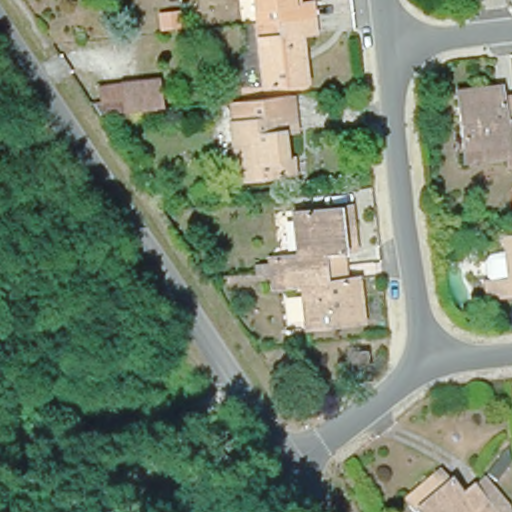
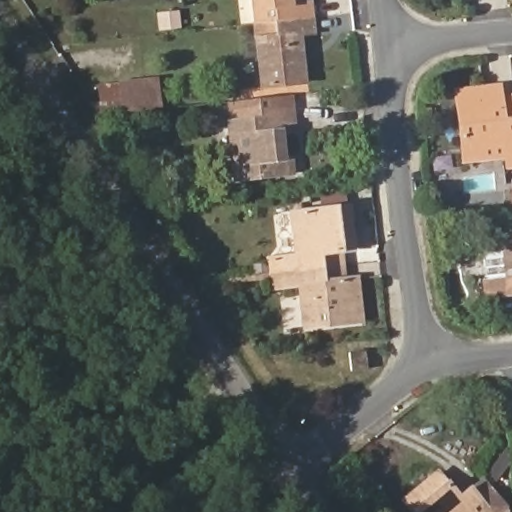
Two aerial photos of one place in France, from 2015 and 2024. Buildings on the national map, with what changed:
unchanged [(301,26),(304,73),(260,76),(254,31),(276,29),(274,13),(253,15),(252,0),(316,0),(317,26),(301,26)]
unchanged [(165,109),(104,112),(100,71),(157,71),(165,109)]
unchanged [(462,79),(503,78),(509,114),(512,114),(512,199),(511,200),(504,150),(468,156),(462,79)]
unchanged [(296,134),(281,136),(283,161),(288,161),(289,176),(233,180),(229,124),(238,123),(237,104),(293,99),(296,134)]
unchanged [(359,251),(329,254),(331,282),(362,281),(366,323),(303,328),(302,287),(284,288),(283,258),(297,257),(294,210),(356,203),(359,251)]
unchanged [(479,249),(502,246),(500,226),(512,225),(512,291),(479,294),(479,249)]
unchanged [(359,364),(341,365),(341,348),(358,347),(359,364)]
unchanged [(466,486),(479,476),(506,509),(501,512),(489,512),(484,507),(478,512),(424,512),(408,493),(447,463),(466,486)]

